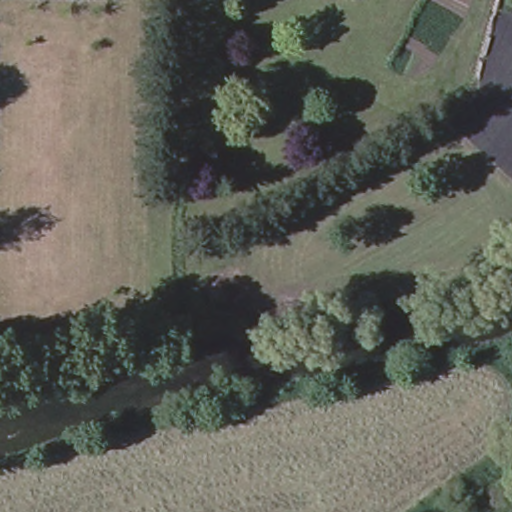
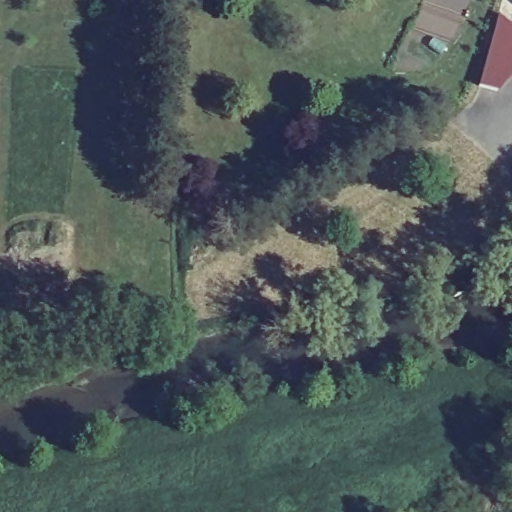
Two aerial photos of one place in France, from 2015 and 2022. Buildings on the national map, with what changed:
new [(512,76),(500,90),(479,84),(499,15),(512,26),(512,76)]

